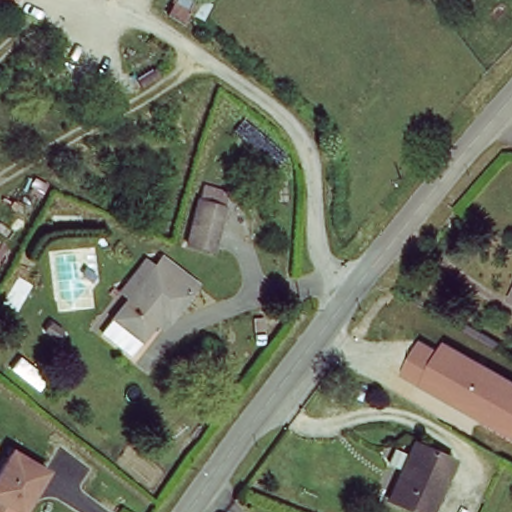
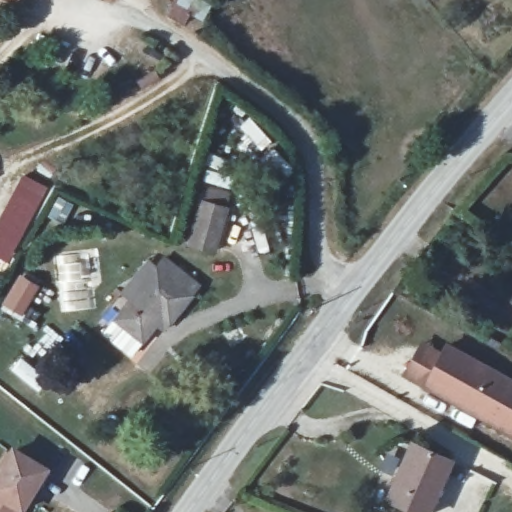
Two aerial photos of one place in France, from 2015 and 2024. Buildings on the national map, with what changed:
unchanged [(181,19),(166,11),(171,0),(187,8),(181,19)]
new [(49,188),(7,262),(0,258),(0,215),(24,174),(49,188)]
unchanged [(229,188),(212,248),(187,240),(204,181),(229,188)]
unchanged [(106,332),(117,316),(154,264),(162,251),(186,267),(200,277),(166,325),(158,319),(146,336),(134,353),(106,332)]
unchanged [(69,318),(59,327),(48,317),(58,307),(69,318)]
unchanged [(424,388),(401,376),(421,342),(439,352),(445,341),(512,378),(512,437),(424,388)]
unchanged [(411,445),(454,462),(432,512),(422,512),(389,500),(411,445)]
unchanged [(21,511),(16,508),(13,512),(0,512),(0,475),(16,452),(47,472),(21,511)]

